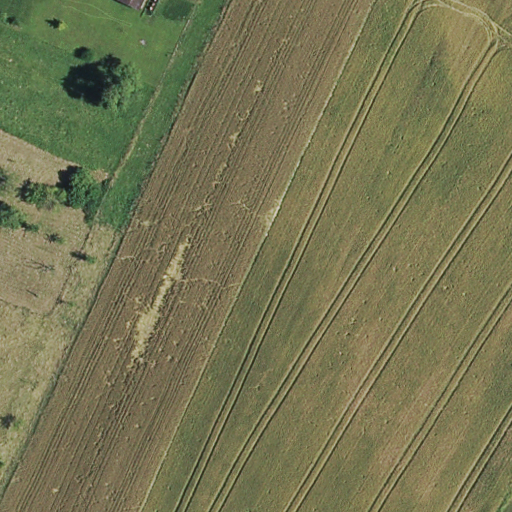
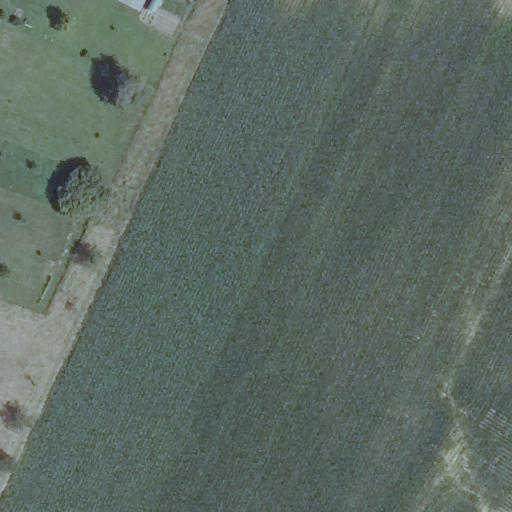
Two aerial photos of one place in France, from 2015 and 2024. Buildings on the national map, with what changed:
unchanged [(126,0),(142,0),(138,6),(126,0)]

